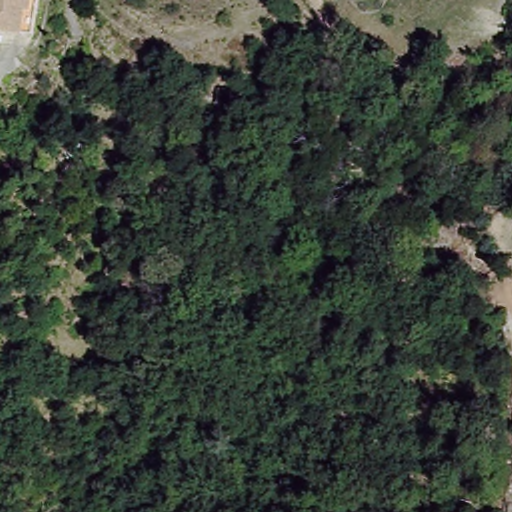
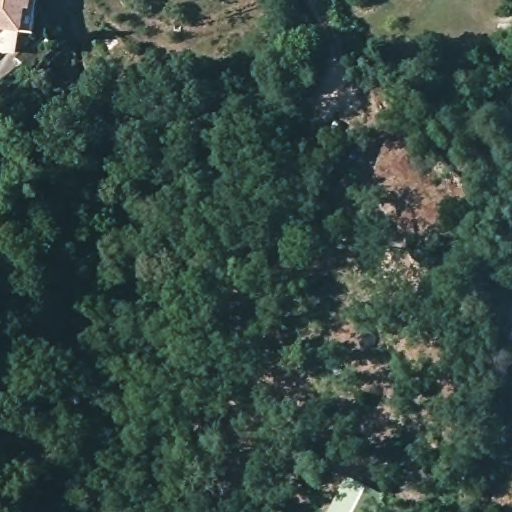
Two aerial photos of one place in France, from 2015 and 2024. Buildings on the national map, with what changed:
unchanged [(0,31),(0,0),(34,0),(29,36),(17,34),(0,31)]
new [(347,477),(386,496),(378,512),(330,512),(347,477)]

